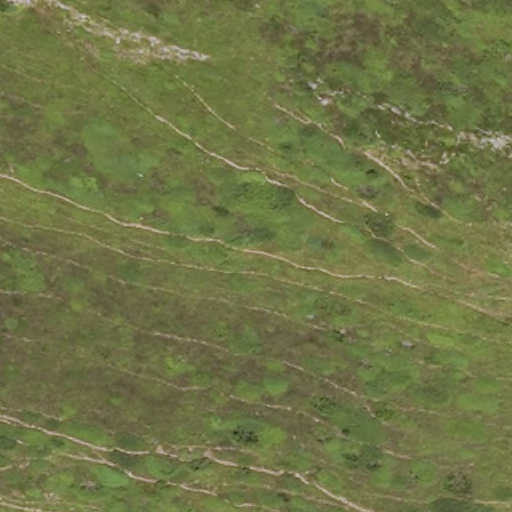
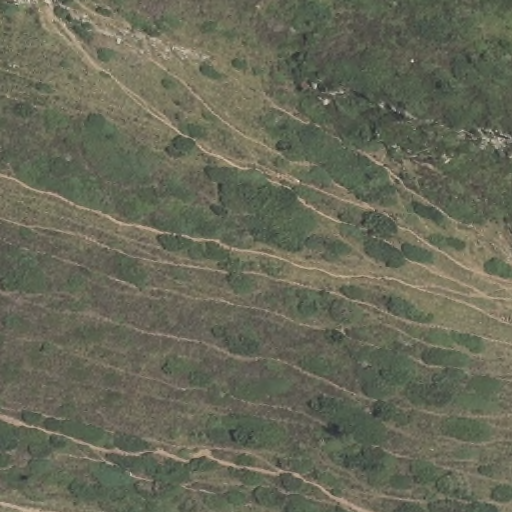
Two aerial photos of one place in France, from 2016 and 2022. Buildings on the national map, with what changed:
[]

